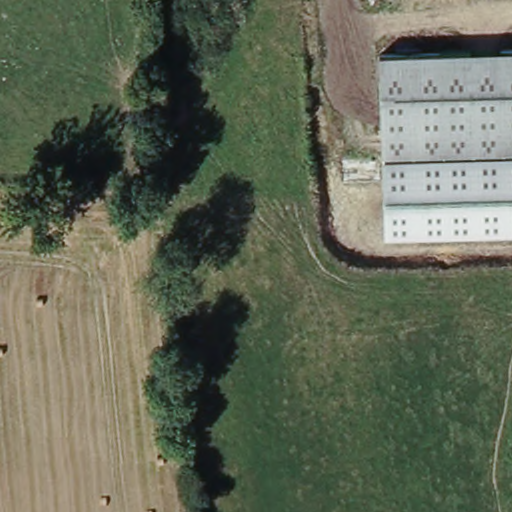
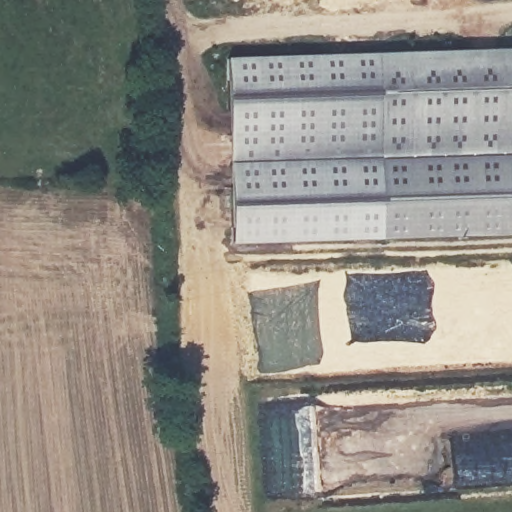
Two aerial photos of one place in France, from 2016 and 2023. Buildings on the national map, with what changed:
unchanged [(380,52),(512,47),(512,155),(384,158),(380,52)]
new [(235,243),(229,58),(380,52),(384,158),(385,238),(235,243)]
unchanged [(512,235),(385,238),(384,158),(512,155),(512,235)]

